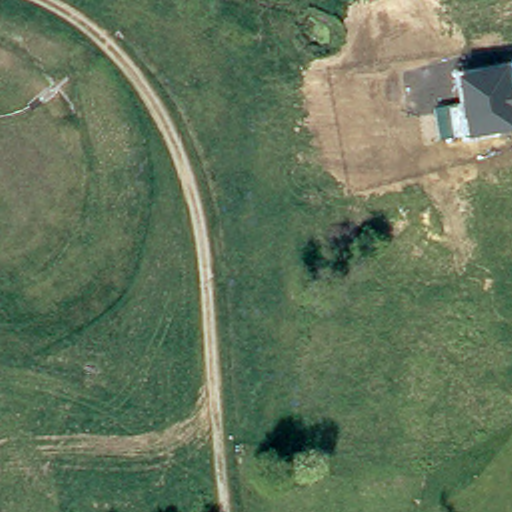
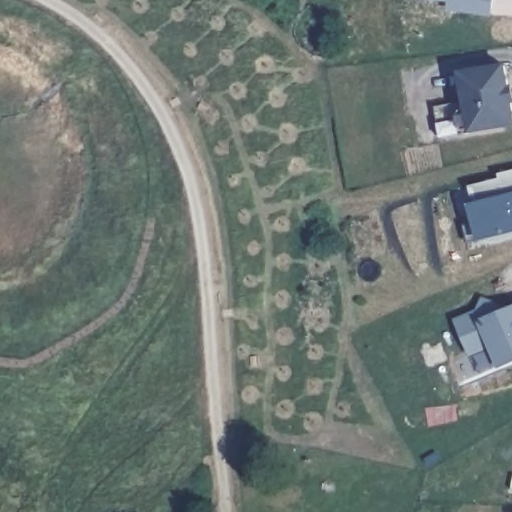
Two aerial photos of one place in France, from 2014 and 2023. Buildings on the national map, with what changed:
new [(450,9),(451,4),(431,0),(492,0),(491,14),(450,9)]
unchanged [(512,69),(512,128),(467,136),(458,70),(511,63),(512,69)]
new [(512,172),(512,233),(483,240),(469,188),(500,179),(499,175),(512,172)]
new [(484,301),(502,309),(504,314),(512,311),(512,362),(501,367),(492,347),(472,355),(458,323),(478,314),(484,301)]

